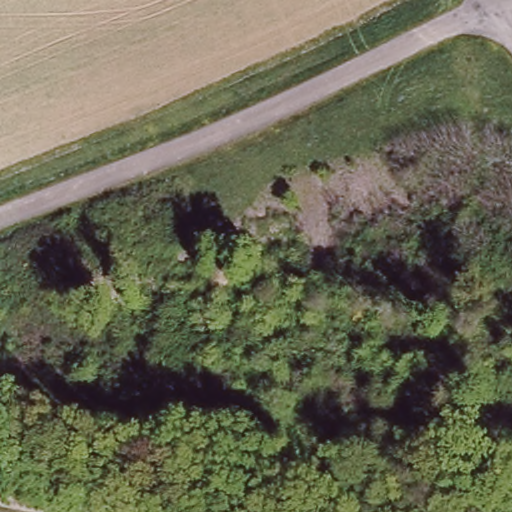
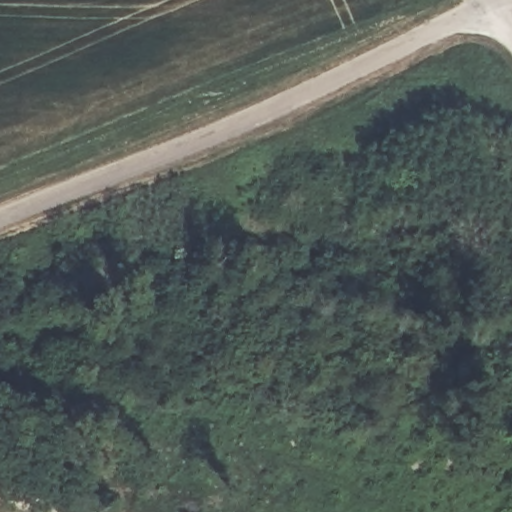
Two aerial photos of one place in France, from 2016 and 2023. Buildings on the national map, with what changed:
[]

